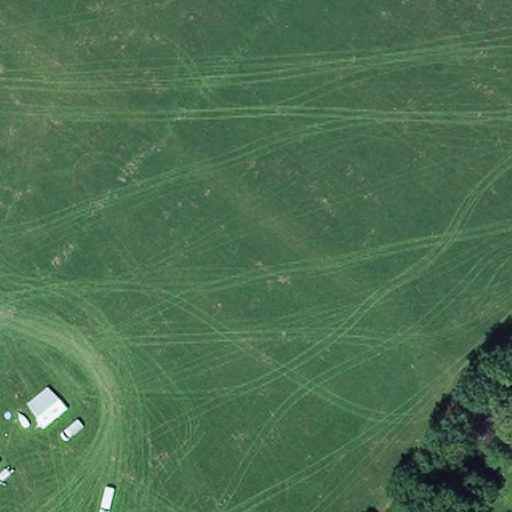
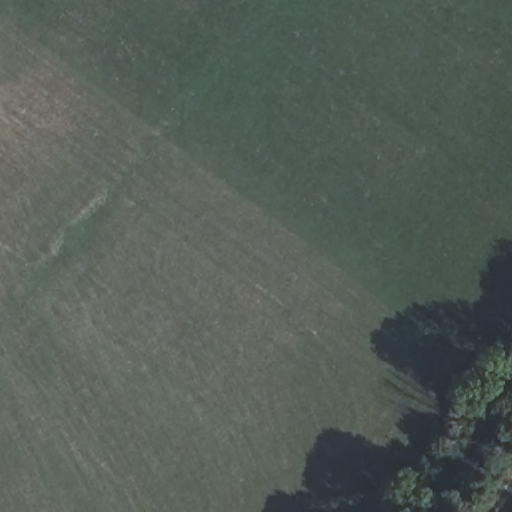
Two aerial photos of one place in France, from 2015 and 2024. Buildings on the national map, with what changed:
[]

